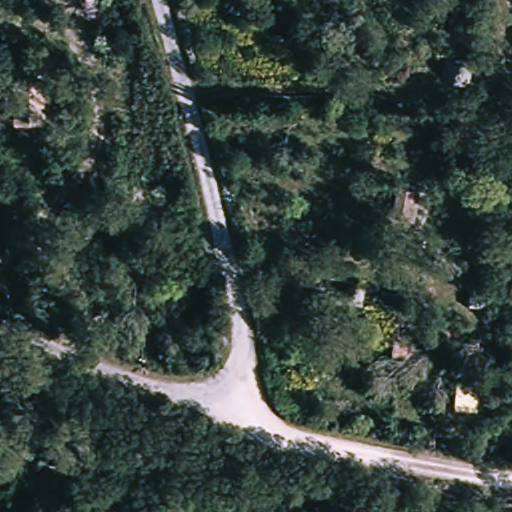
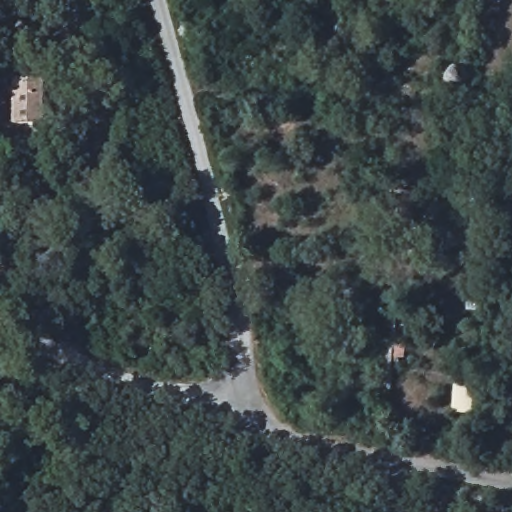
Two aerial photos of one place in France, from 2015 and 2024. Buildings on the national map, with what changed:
unchanged [(45,127),(13,127),(12,80),(45,80),(45,127)]
unchanged [(412,219),(388,213),(394,187),(417,192),(412,219)]
unchanged [(477,413),(454,412),(457,377),(480,379),(477,413)]

